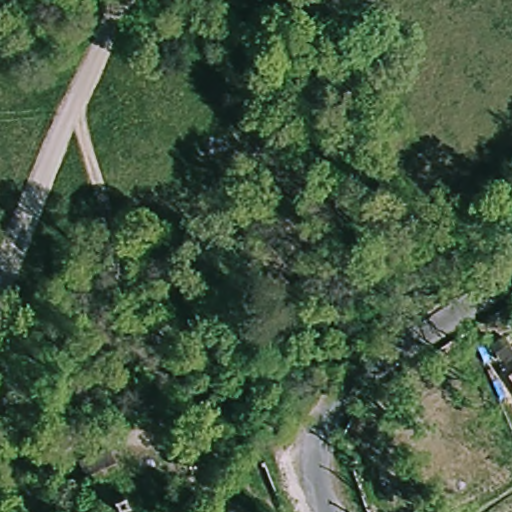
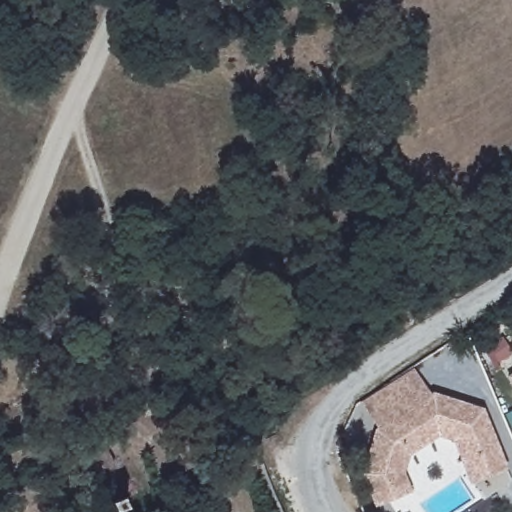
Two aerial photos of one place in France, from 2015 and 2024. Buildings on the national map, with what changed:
new [(418,367),(435,392),(383,427),(366,402),(418,367)]
unchanged [(507,376),(512,372),(512,384),(507,376)]
new [(472,482),(464,462),(455,440),(440,434),(411,454),(401,470),(409,489),(373,503),(360,470),(380,429),(383,427),(435,392),(438,391),(485,408),(500,447),(508,467),(512,479),(512,482),(484,500),(472,482)]
unchanged [(142,402),(146,409),(135,413),(132,406),(142,402)]
unchanged [(107,448),(114,464),(83,477),(76,463),(107,448)]

